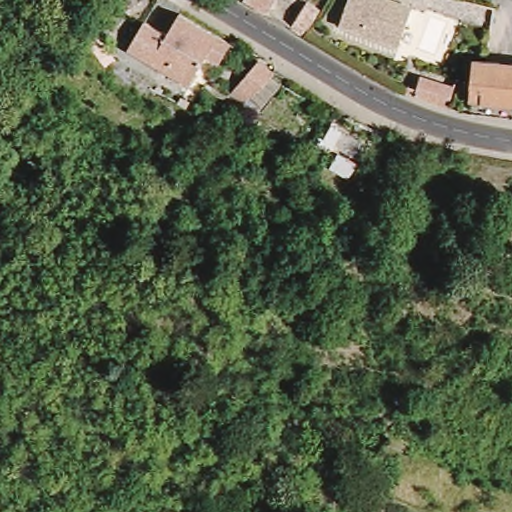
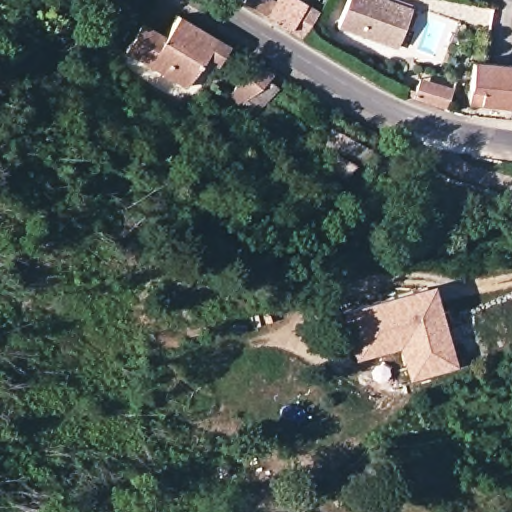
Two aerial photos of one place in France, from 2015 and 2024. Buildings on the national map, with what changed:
unchanged [(136,11),(125,4),(126,0),(143,0),(136,11)]
unchanged [(266,13),(246,0),(272,0),(266,13)]
unchanged [(345,0),(394,0),(406,6),(390,45),(336,21),(345,0)]
new [(309,2),(322,10),(304,40),(291,32),(309,2)]
unchanged [(230,49),(218,67),(201,59),(185,87),(122,53),(142,23),(164,36),(176,12),(230,49)]
unchanged [(272,66),(252,100),(236,90),(255,57),(272,66)]
unchanged [(469,60),(512,62),(512,108),(466,103),(469,60)]
unchanged [(452,87),(445,109),(410,98),(417,77),(452,87)]
unchanged [(363,160),(337,144),(345,132),(371,147),(363,160)]
new [(395,348),(356,359),(340,310),(431,282),(456,365),(408,380),(400,349),(395,348)]

